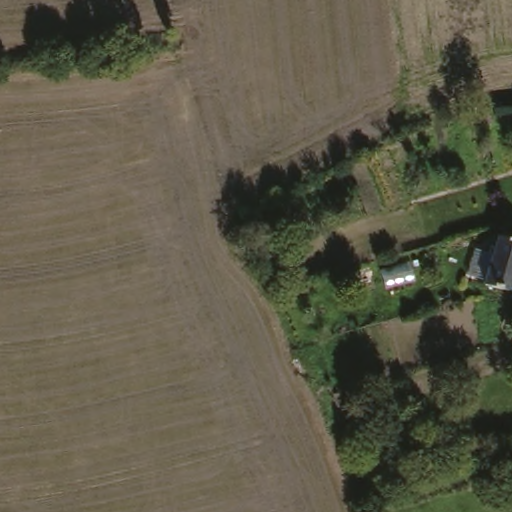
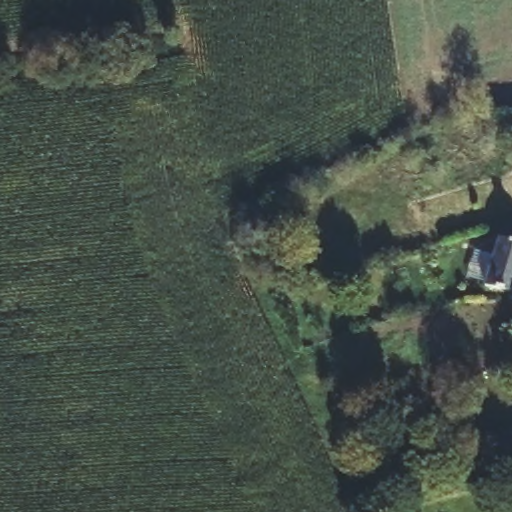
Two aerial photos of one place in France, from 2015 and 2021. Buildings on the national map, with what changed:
unchanged [(497,285),(512,249),(512,290),(497,285)]
unchanged [(325,319),(308,323),(304,308),(322,304),(325,319)]

